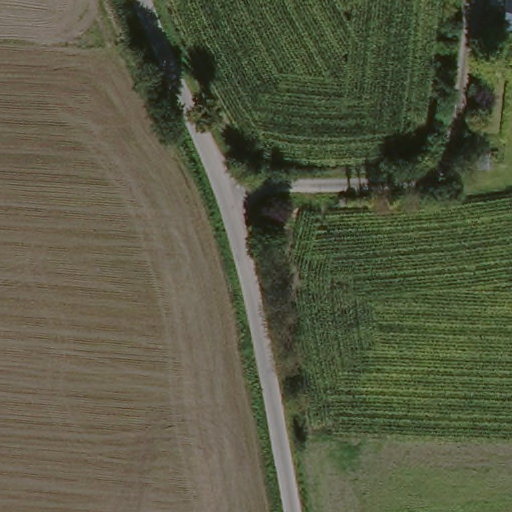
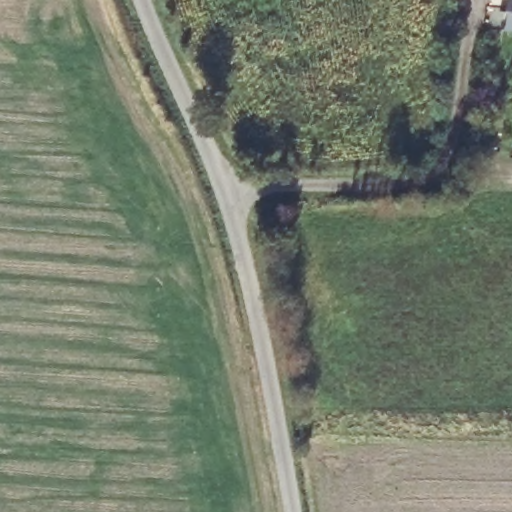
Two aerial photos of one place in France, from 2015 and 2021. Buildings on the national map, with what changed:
unchanged [(497,29),(502,0),(512,0),(512,31),(497,29)]

